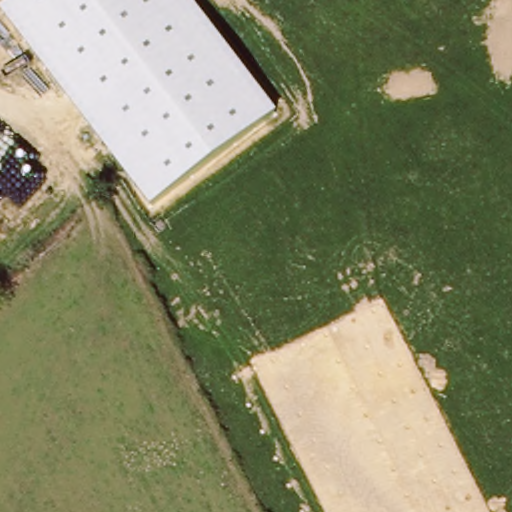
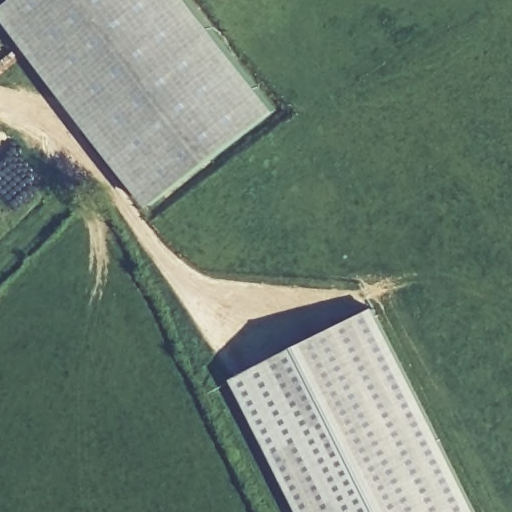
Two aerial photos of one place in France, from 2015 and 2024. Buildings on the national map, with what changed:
unchanged [(0,9),(13,0),(193,0),(277,111),(152,206),(0,9)]
new [(478,512),(300,512),(233,378),(375,307),(478,512)]

